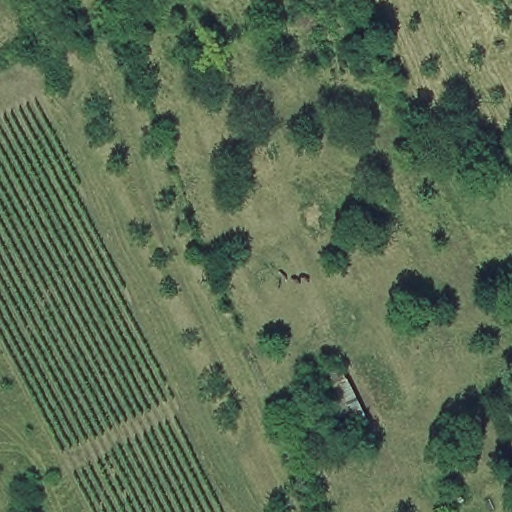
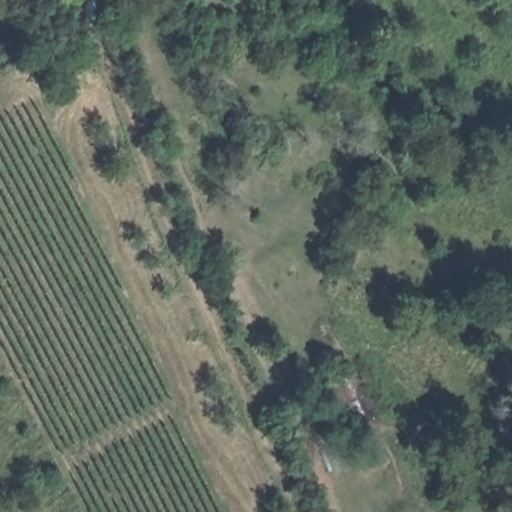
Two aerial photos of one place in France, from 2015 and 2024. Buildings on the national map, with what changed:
unchanged [(340,363),(370,420),(345,430),(341,419),(310,426),(313,393),(305,377),(340,363)]

